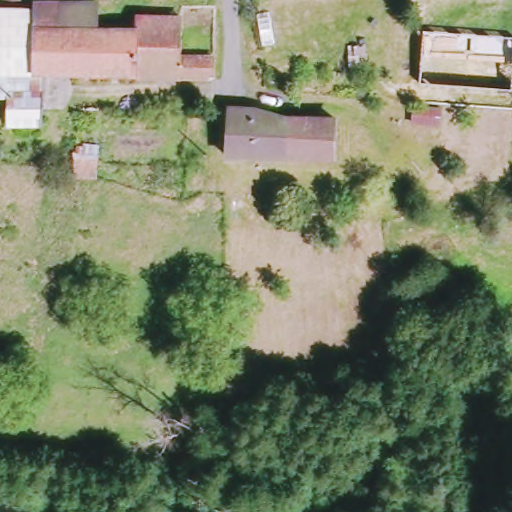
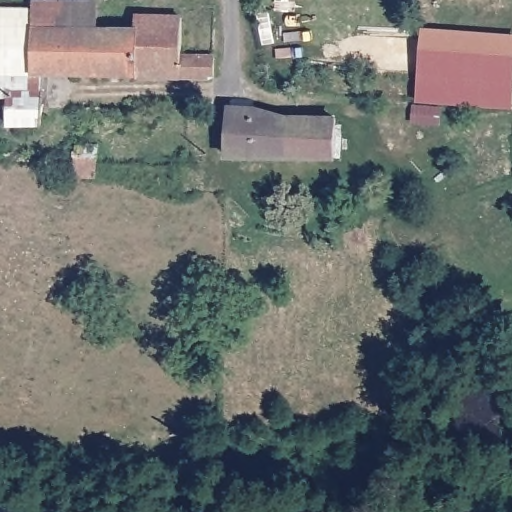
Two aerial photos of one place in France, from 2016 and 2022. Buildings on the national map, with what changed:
unchanged [(50,4),(115,3),(116,27),(48,28),(50,7),(50,4)]
unchanged [(0,7),(18,7),(11,127),(0,127),(0,7)]
unchanged [(45,74),(45,127),(11,127),(18,7),(50,7),(48,28),(116,27),(141,26),(141,20),(186,22),(186,54),(218,56),(217,71),(217,74),(45,74)]
new [(417,102),(421,28),(512,34),(512,108),(417,102)]
unchanged [(439,125),(412,124),(412,108),(440,109),(439,125)]
unchanged [(231,160),(233,115),(276,113),(281,117),(338,116),(337,158),(231,160)]
unchanged [(76,171),(77,150),(95,152),(95,174),(76,171)]

